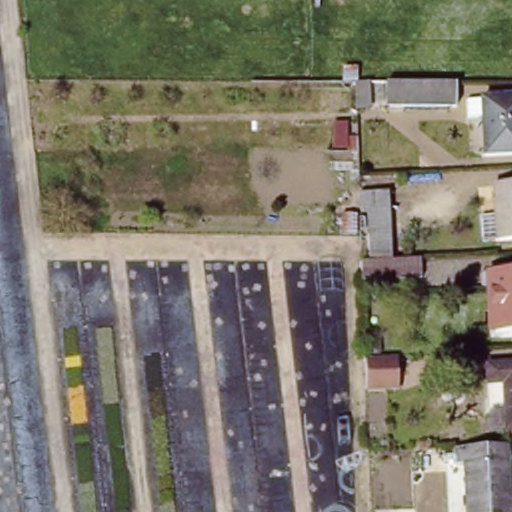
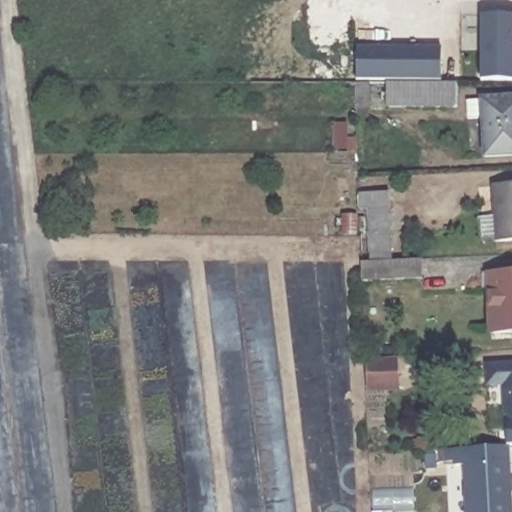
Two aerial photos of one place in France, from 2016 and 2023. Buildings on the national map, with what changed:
new [(512,79),(481,79),(481,16),(512,18),(512,79)]
new [(356,78),(357,46),(441,47),(440,79),(356,78)]
unchanged [(454,84),(453,105),(385,105),(385,83),(454,84)]
unchanged [(512,150),(484,151),(482,113),(467,113),(467,96),(512,94),(512,150)]
unchanged [(512,239),(479,241),(477,218),(489,217),(488,186),(512,184),(512,239)]
unchanged [(353,195),(383,193),(386,253),(365,254),(361,209),(353,209),(353,195)]
unchanged [(355,261),(415,260),(416,278),(356,280),(355,261)]
unchanged [(512,333),(484,333),(482,263),(512,263),(512,333)]
unchanged [(364,362),(396,361),(397,392),(365,394),(364,362)]
unchanged [(512,429),(502,430),(499,383),(483,384),(483,367),(512,366),(512,429)]
unchanged [(502,441),(505,512),(460,512),(457,460),(449,460),(448,443),(502,441)]

